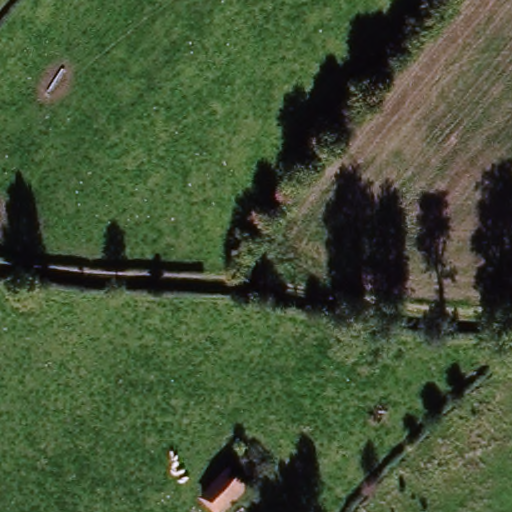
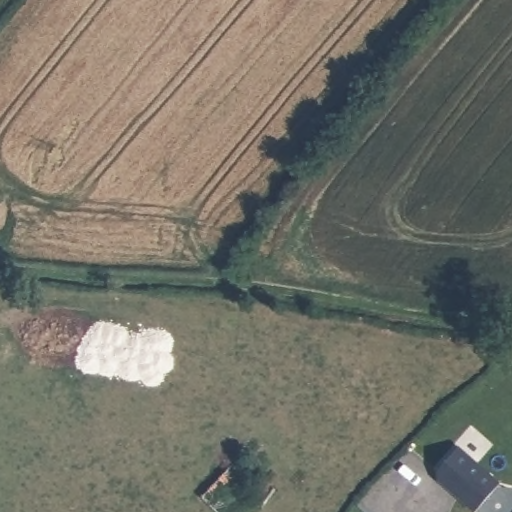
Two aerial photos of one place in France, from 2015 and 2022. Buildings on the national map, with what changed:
unchanged [(266,461),(228,512),(215,512),(203,503),(247,446),(266,461)]
new [(501,484),(476,512),(471,512),(438,482),(436,472),(460,446),(501,484)]

